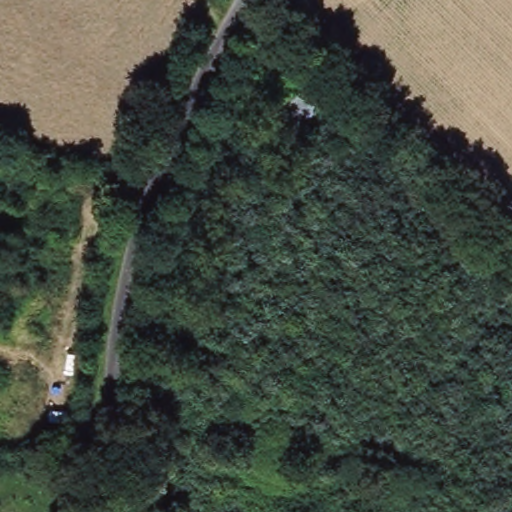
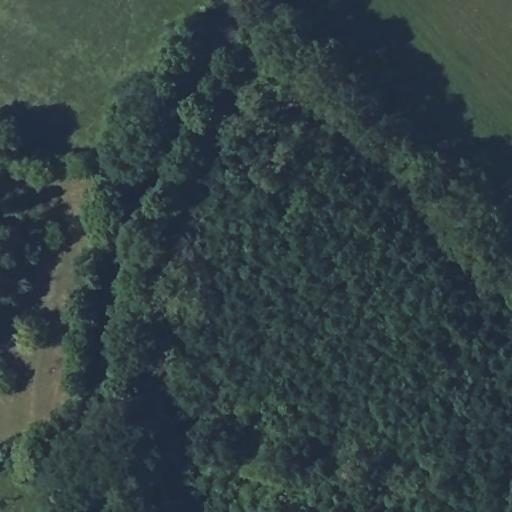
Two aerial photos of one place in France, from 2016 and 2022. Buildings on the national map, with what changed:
unchanged [(317,105),(296,140),(259,116),(280,85),(317,105)]

